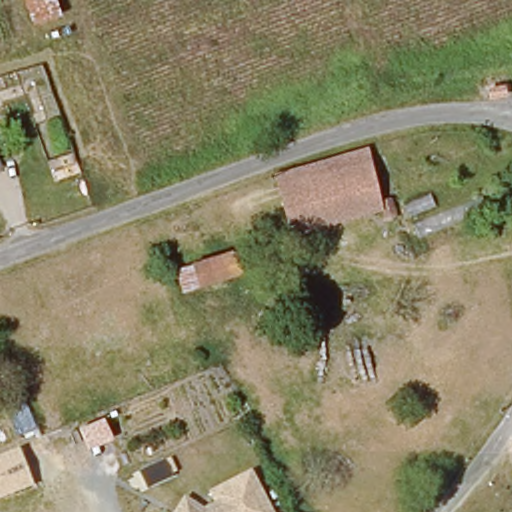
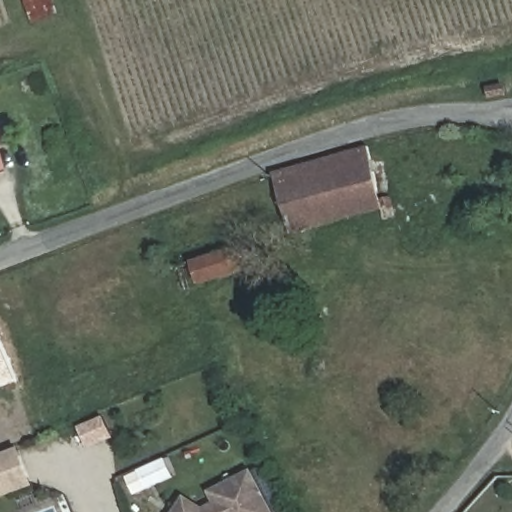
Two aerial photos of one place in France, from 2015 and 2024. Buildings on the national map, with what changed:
unchanged [(65,13),(35,21),(27,0),(61,0),(65,13)]
unchanged [(367,144),(394,202),(300,240),(272,180),(367,144)]
unchanged [(0,178),(0,169),(2,177),(0,178)]
unchanged [(175,270),(240,246),(248,271),(182,293),(175,270)]
new [(1,380),(0,378),(0,346),(12,375),(1,380)]
unchanged [(0,498),(0,454),(19,447),(33,486),(0,498)]
unchanged [(269,512),(175,512),(187,496),(205,510),(218,503),(212,492),(252,473),(269,512)]

